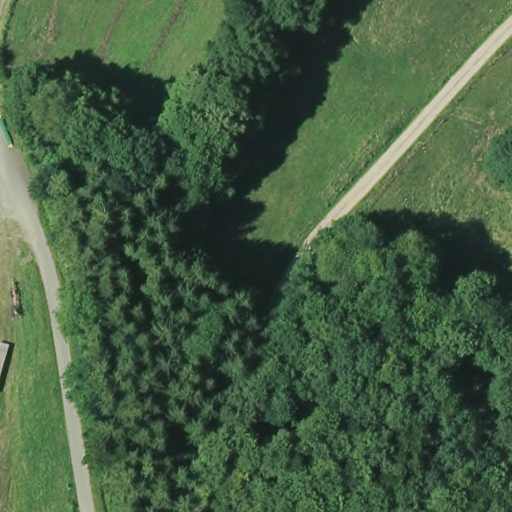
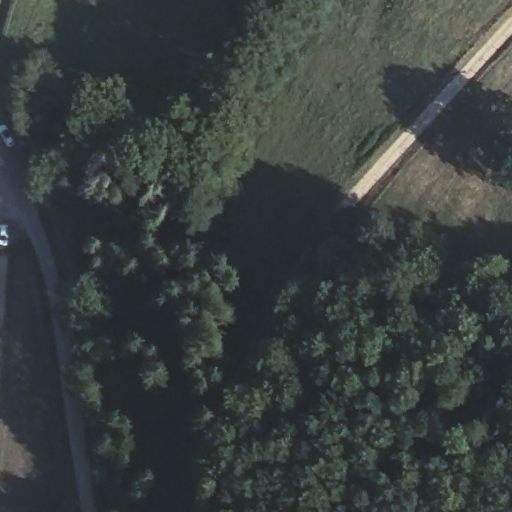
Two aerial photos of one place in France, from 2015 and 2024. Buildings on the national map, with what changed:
[]

